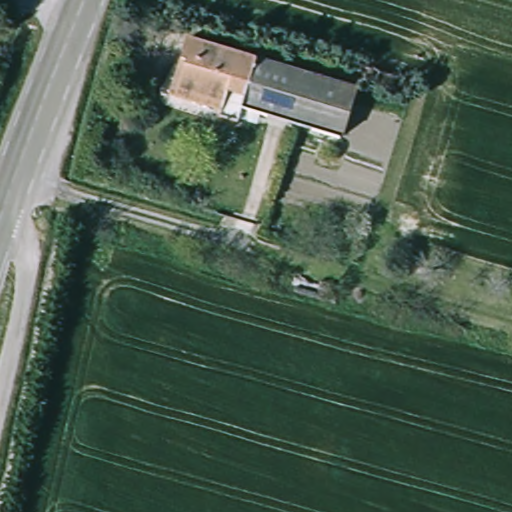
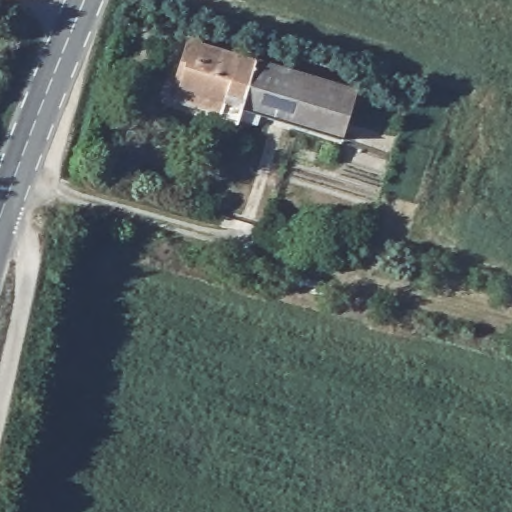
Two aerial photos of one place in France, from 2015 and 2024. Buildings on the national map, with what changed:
unchanged [(241,105),(235,121),(219,116),(221,108),(177,96),(187,59),(179,57),(186,37),(357,89),(342,136),(241,105)]

